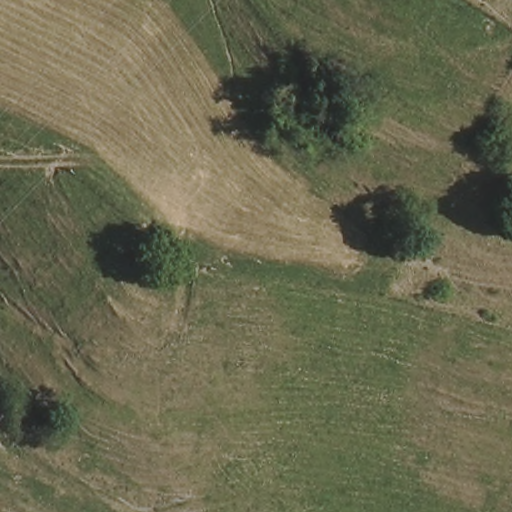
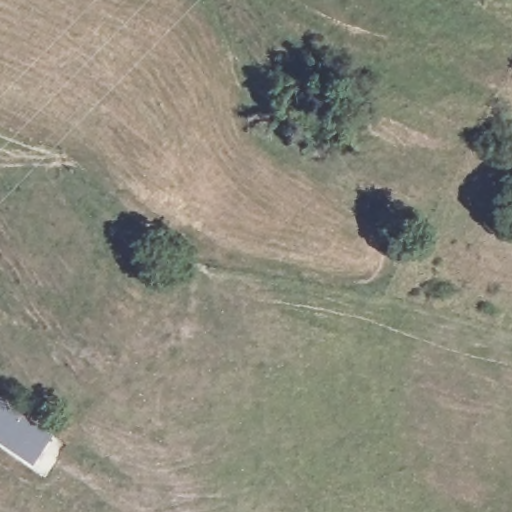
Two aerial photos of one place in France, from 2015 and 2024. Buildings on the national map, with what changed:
new [(32,466),(0,444),(0,399),(52,435),(32,466)]

